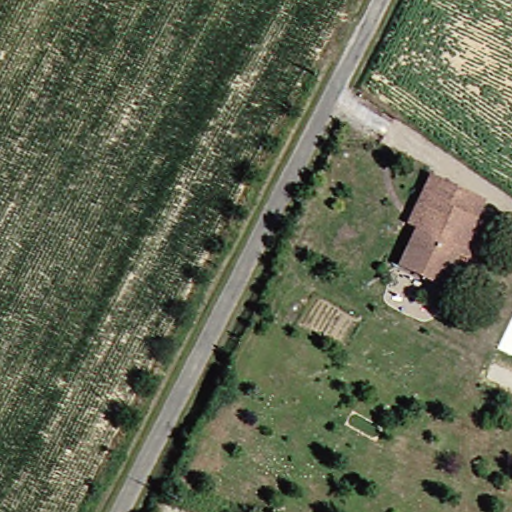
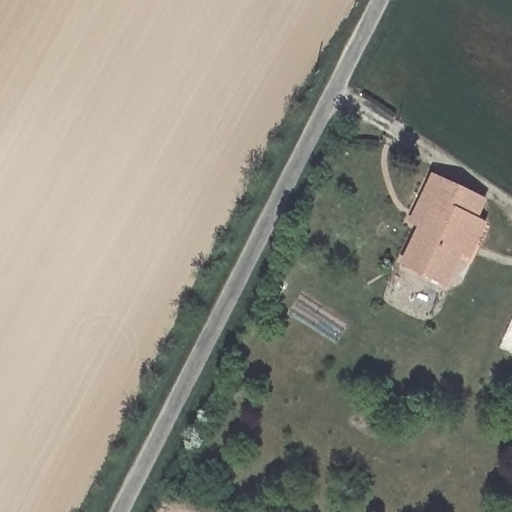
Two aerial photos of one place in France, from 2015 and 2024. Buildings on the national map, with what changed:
unchanged [(407,267),(438,204),(430,199),(440,177),(488,203),(445,288),(407,267)]

